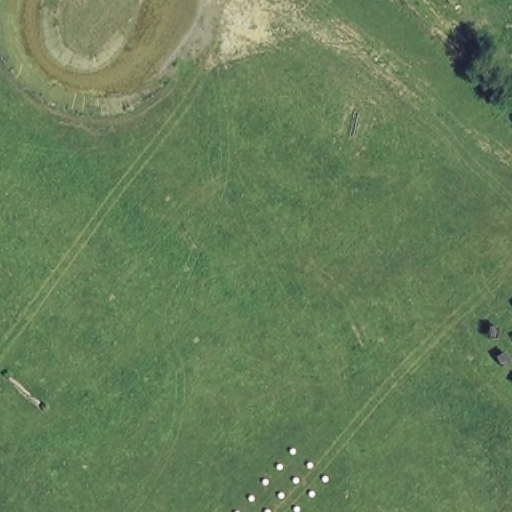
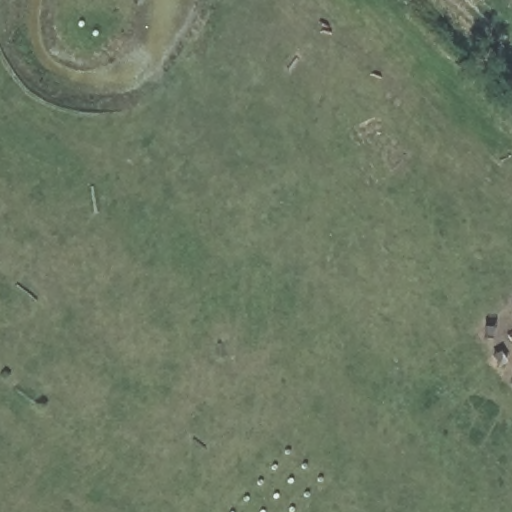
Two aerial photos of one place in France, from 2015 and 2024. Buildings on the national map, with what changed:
[]

